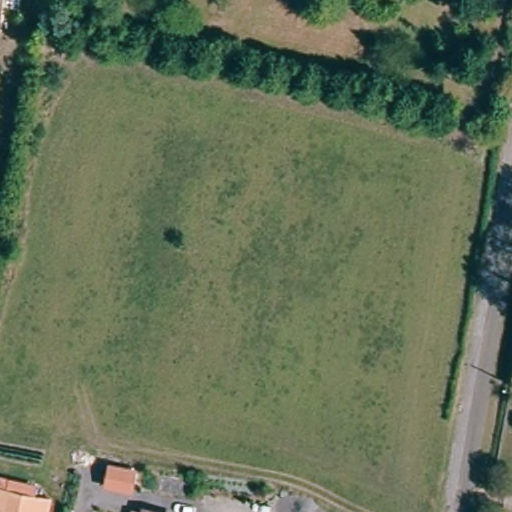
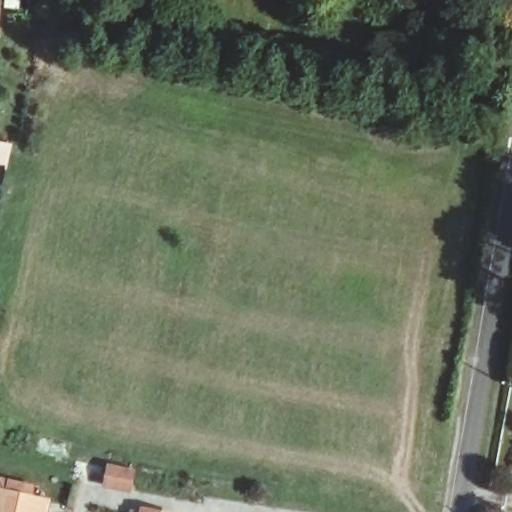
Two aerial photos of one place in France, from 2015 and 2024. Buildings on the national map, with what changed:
unchanged [(1,35),(0,35),(0,0),(4,0),(1,35)]
unchanged [(130,473),(128,490),(105,487),(107,470),(130,473)]
unchanged [(54,502),(51,512),(0,512),(0,490),(12,492),(54,502)]

